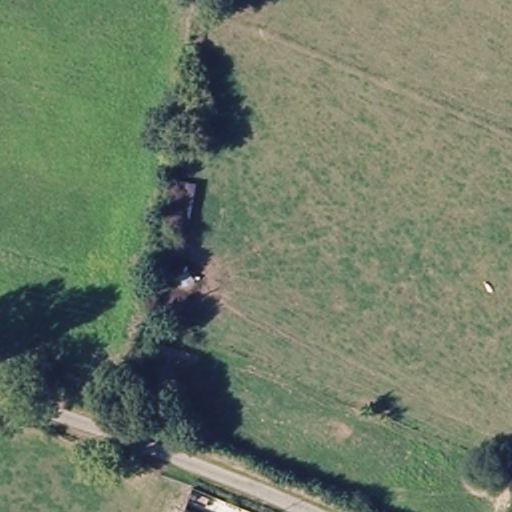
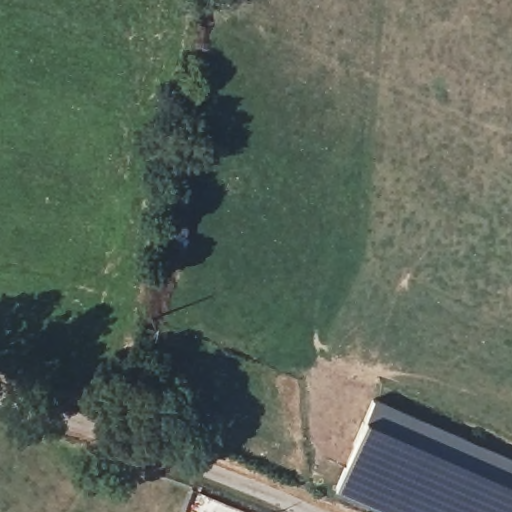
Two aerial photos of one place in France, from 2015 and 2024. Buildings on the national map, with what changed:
new [(512,512),(391,512),(335,487),(373,397),(512,458),(512,512)]

